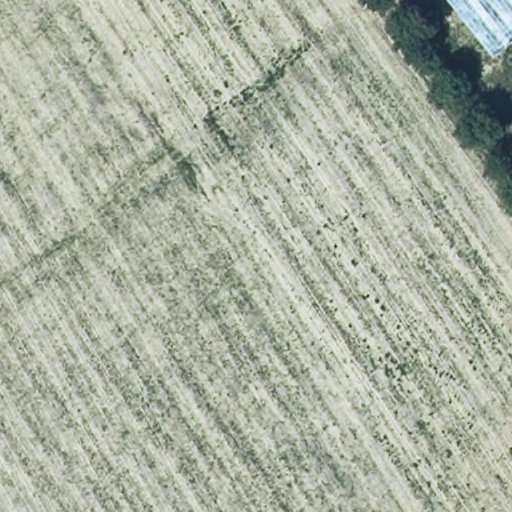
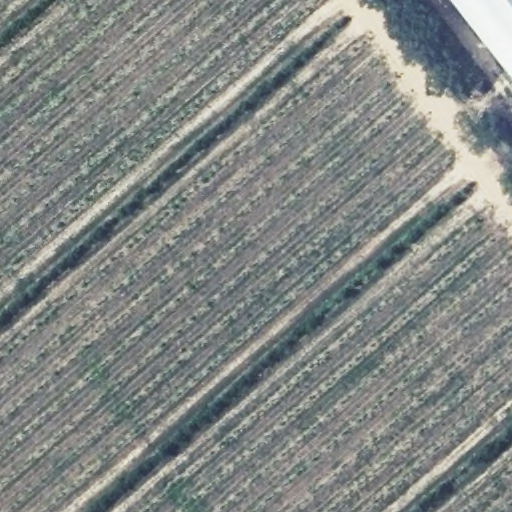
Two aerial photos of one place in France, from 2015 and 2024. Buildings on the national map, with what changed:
unchanged [(448,0),(512,0),(512,43),(494,57),(448,0)]
new [(512,43),(512,78),(495,56),(512,43)]

